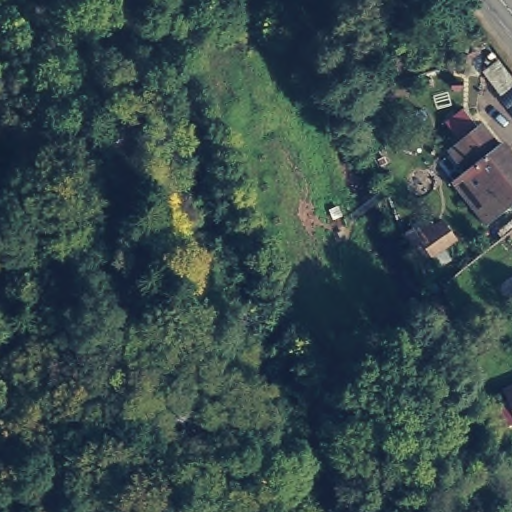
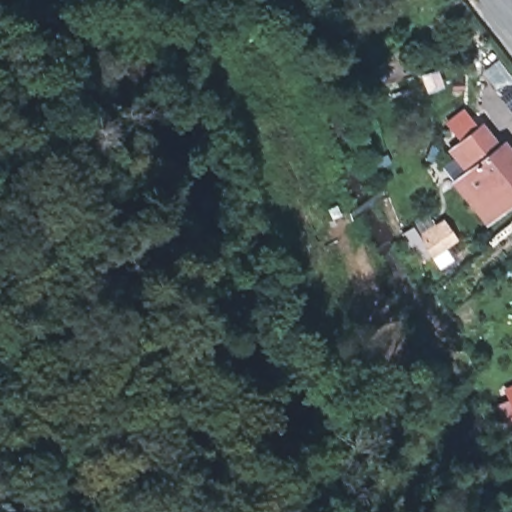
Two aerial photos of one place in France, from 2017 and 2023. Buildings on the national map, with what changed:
unchanged [(501,143),(512,157),(512,197),(483,220),(449,181),(462,169),(447,151),(456,143),(454,141),(474,125),(494,148),(501,143)]
unchanged [(453,237),(433,252),(422,238),(411,223),(425,213),(435,228),(442,223),(453,237)]
unchanged [(512,385),(512,409),(503,389),(512,385)]

